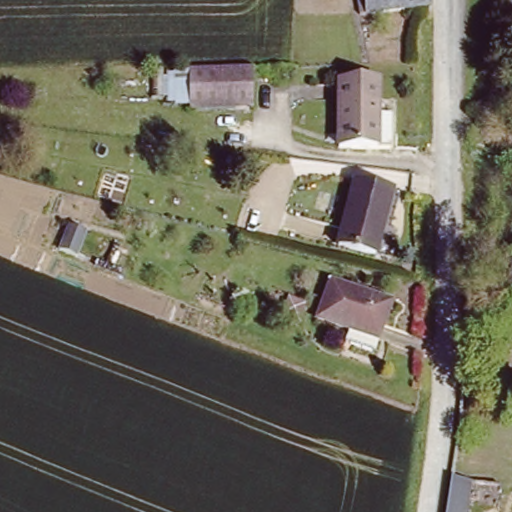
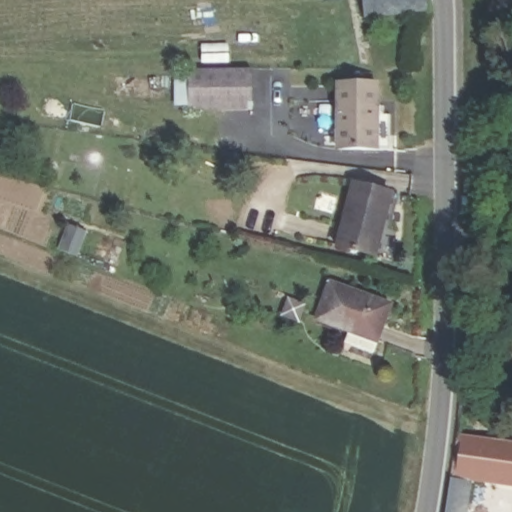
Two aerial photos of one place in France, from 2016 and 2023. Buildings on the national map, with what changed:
unchanged [(437,9),(403,14),(369,18),(365,0),(435,0),(437,9)]
unchanged [(186,110),(186,70),(251,70),(252,110),(186,110)]
unchanged [(374,149),(335,145),(344,78),(383,82),(374,149)]
unchanged [(339,241),(350,200),(356,177),(396,187),(391,202),(376,250),(339,241)]
unchanged [(82,262),(68,255),(78,233),(92,239),(82,262)]
unchanged [(319,321),(334,282),(394,305),(379,344),(319,321)]
new [(457,432),(512,442),(512,484),(502,482),(449,481),(457,432)]
unchanged [(502,482),(503,498),(468,497),(466,512),(441,512),(444,481),(502,482)]

